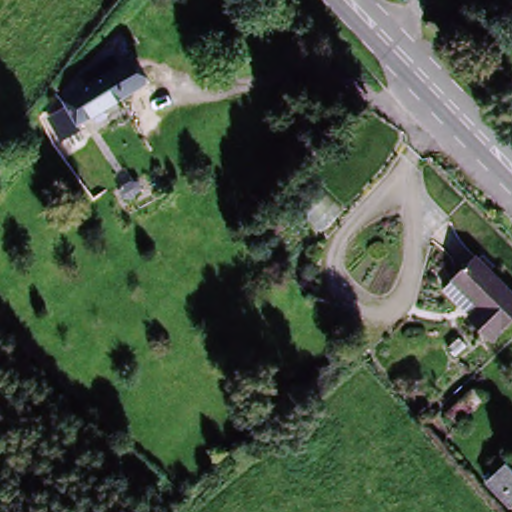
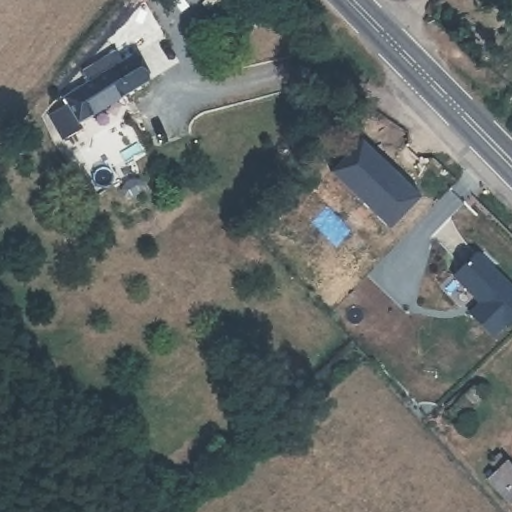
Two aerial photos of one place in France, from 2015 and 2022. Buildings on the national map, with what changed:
unchanged [(71,102),(69,98),(97,82),(90,69),(119,53),(125,65),(135,59),(150,85),(83,124),(71,102)]
new [(364,139),(424,195),(394,228),(334,172),(364,139)]
unchanged [(479,256),(512,289),(512,323),(494,341),(444,290),(479,256)]
unchanged [(470,345),(458,356),(450,347),(462,336),(470,345)]
unchanged [(512,469),(512,507),(489,483),(508,464),(512,469)]

